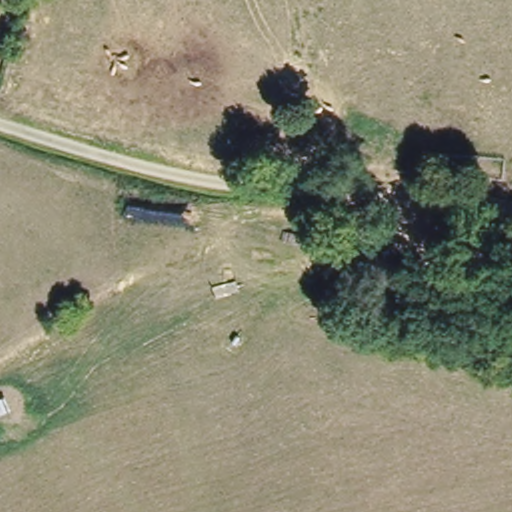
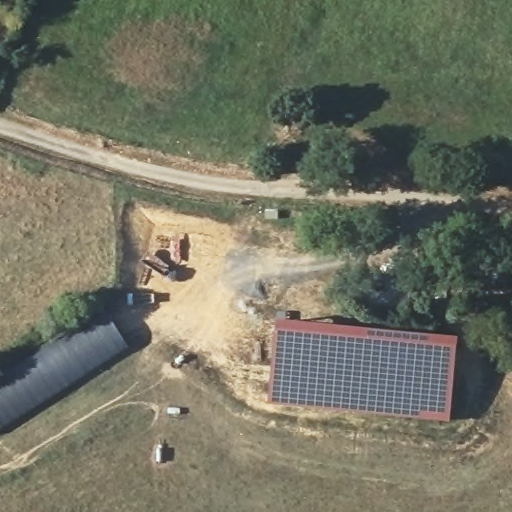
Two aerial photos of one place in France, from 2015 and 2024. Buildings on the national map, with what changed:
new [(5,382),(3,379),(48,344),(107,311),(129,348),(0,430),(0,386),(5,382)]
new [(269,372),(276,317),(317,320),(332,324),(459,338),(451,423),(268,404),(269,372)]

